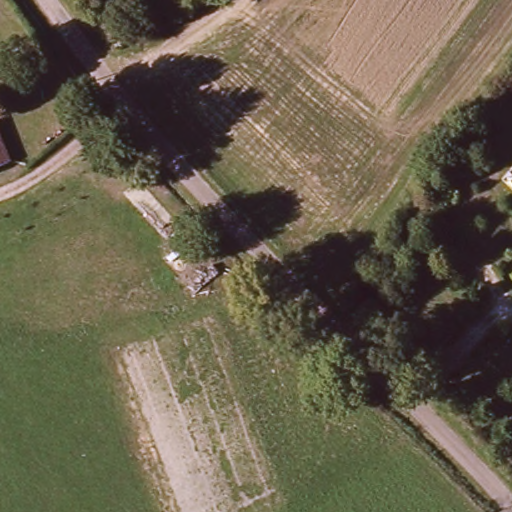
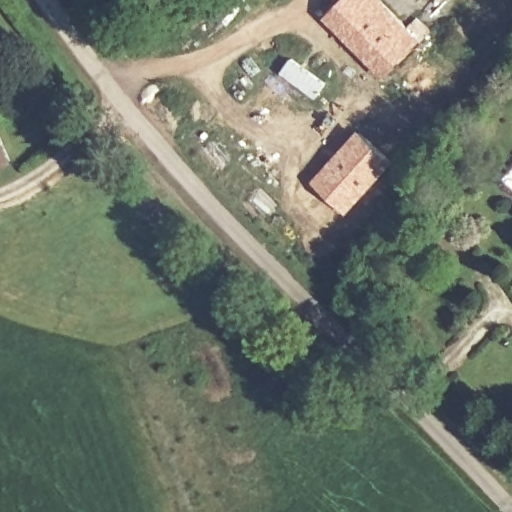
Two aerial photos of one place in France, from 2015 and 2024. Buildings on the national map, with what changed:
new [(339,0),(382,0),(407,25),(417,15),(430,30),(383,78),(323,16),(339,0)]
new [(291,56),(327,84),(316,99),(279,73),(291,56)]
new [(359,128),(395,161),(346,214),(311,180),(359,128)]
unchanged [(0,166),(0,136),(10,162),(6,164),(0,166)]

